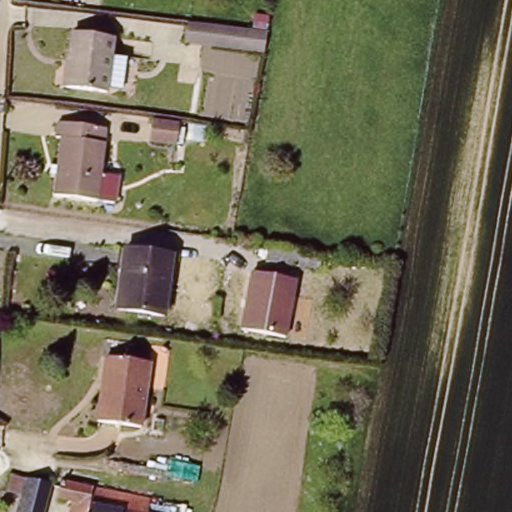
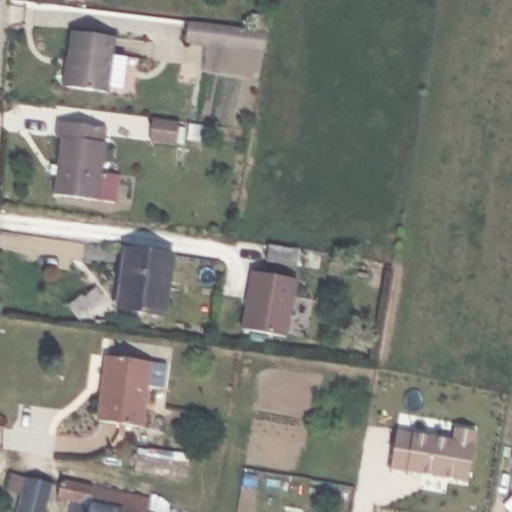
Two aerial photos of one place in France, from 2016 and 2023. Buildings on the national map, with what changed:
unchanged [(269,32),(267,53),(183,42),(187,19),(269,32)]
unchanged [(67,86),(74,29),(113,34),(107,91),(67,86)]
unchanged [(54,191),(61,134),(54,133),(56,117),(105,123),(97,196),(54,191)]
unchanged [(181,127),(178,150),(155,147),(157,124),(181,127)]
unchanged [(118,302),(123,244),(171,249),(166,309),(118,302)]
unchanged [(291,264),(264,260),(265,244),(292,248),(291,264)]
unchanged [(251,271),(299,281),(289,337),(241,328),(251,271)]
unchanged [(99,419),(108,354),(152,360),(146,425),(99,419)]
new [(466,482),(387,468),(392,430),(452,439),(453,428),(475,432),(473,444),(466,482)]
unchanged [(57,500),(53,512),(14,512),(19,497),(10,492),(12,473),(58,482),(61,474),(151,490),(151,503),(181,512),(86,512),(86,511),(57,500)]

